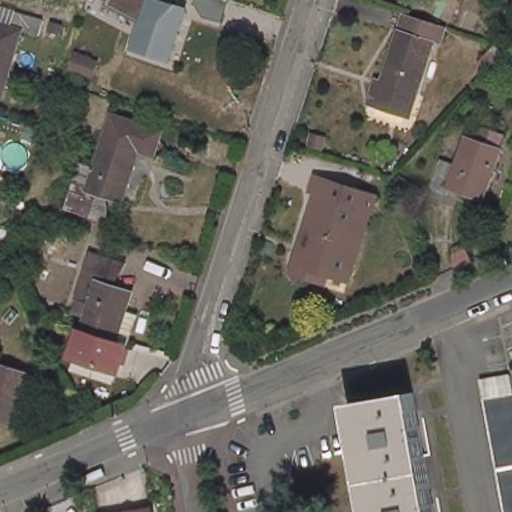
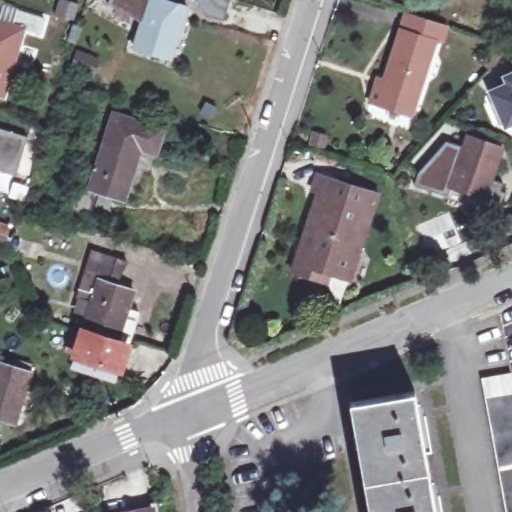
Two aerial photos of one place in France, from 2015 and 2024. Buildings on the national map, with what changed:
unchanged [(65,35),(46,29),(30,24),(10,90),(0,87),(0,14),(5,0),(7,0),(24,5),(51,13),(70,20),(65,35)]
unchanged [(121,49),(131,19),(146,23),(154,0),(169,0),(191,7),(175,58),(141,47),(138,55),(121,49)]
unchanged [(381,101),(406,30),(401,27),(406,10),(448,24),(418,114),(381,101)]
unchanged [(480,63),(498,43),(509,52),(490,72),(480,63)]
unchanged [(99,67),(80,62),(83,49),(103,56),(99,67)]
new [(500,73),(512,68),(512,125),(511,124),(504,127),(486,88),(502,81),(500,73)]
unchanged [(100,215),(71,206),(87,159),(100,163),(118,112),(168,129),(160,154),(146,149),(129,200),(106,193),(100,215)]
unchanged [(455,187),(454,192),(438,186),(448,158),(463,163),(473,135),(478,121),(512,134),(512,136),(508,148),(491,196),(488,197),(455,187)]
unchanged [(4,128),(0,140),(0,127),(4,128)]
unchanged [(325,277),(303,270),(327,194),(323,192),(330,174),(370,187),(388,193),(360,279),(342,273),(340,282),(325,277)]
unchanged [(405,176),(430,189),(424,200),(399,188),(405,176)]
unchanged [(95,301),(80,296),(95,249),(123,258),(115,281),(137,289),(132,305),(144,308),(133,342),(122,339),(86,328),(95,301)]
unchanged [(451,257),(470,249),(475,259),(455,267),(451,257)]
unchanged [(123,370),(78,354),(86,328),(122,339),(133,342),(123,370)]
unchanged [(4,365),(40,377),(23,428),(0,422),(0,364),(4,365)]
unchanged [(487,377),(512,373),(512,512),(490,394),(487,377)]
unchanged [(355,401),(420,390),(442,512),(375,512),(355,401)]
unchanged [(140,507),(165,502),(168,512),(141,512),(140,507)]
unchanged [(132,512),(116,512),(116,511),(131,508),(132,512)]

